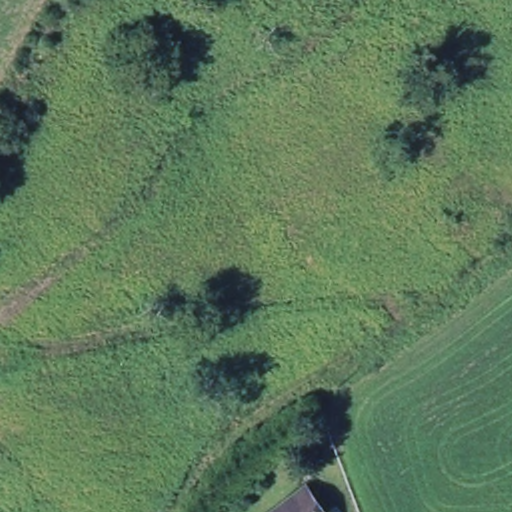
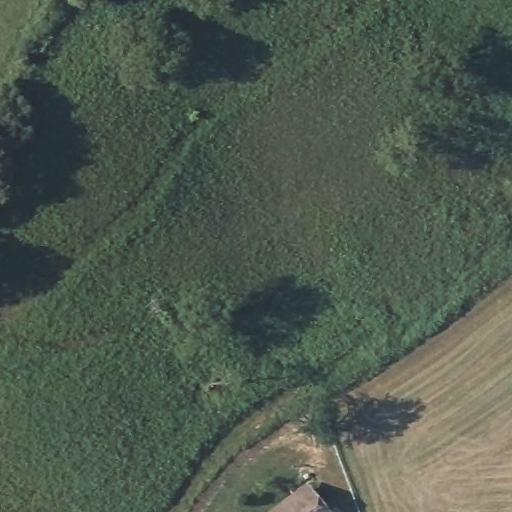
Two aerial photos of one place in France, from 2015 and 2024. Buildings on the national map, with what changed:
unchanged [(330,512),(260,512),(303,477),(330,512)]

